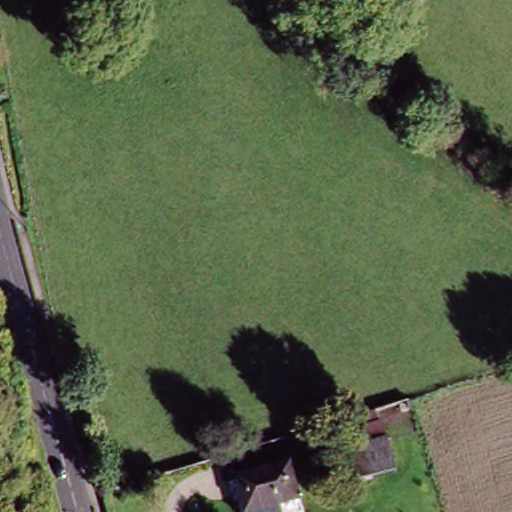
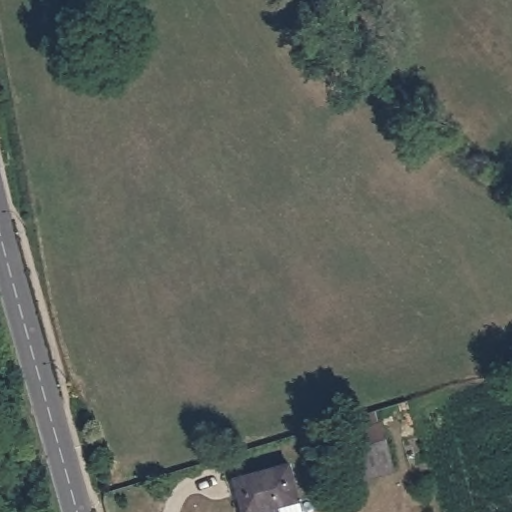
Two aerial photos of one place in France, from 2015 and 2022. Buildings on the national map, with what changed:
unchanged [(347,490),(332,430),(379,417),(395,477),(347,490)]
unchanged [(238,512),(230,480),(283,465),(292,501),(250,512),(238,512)]

